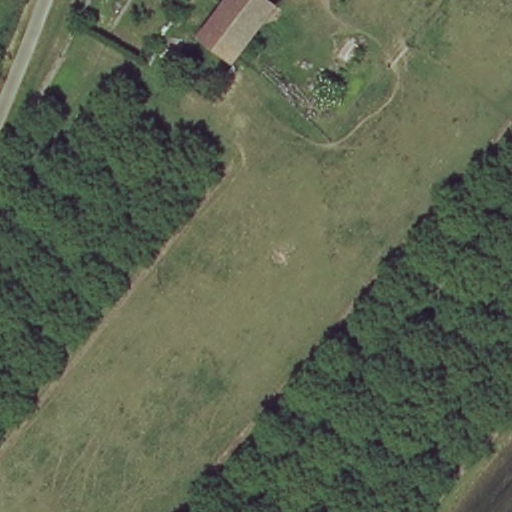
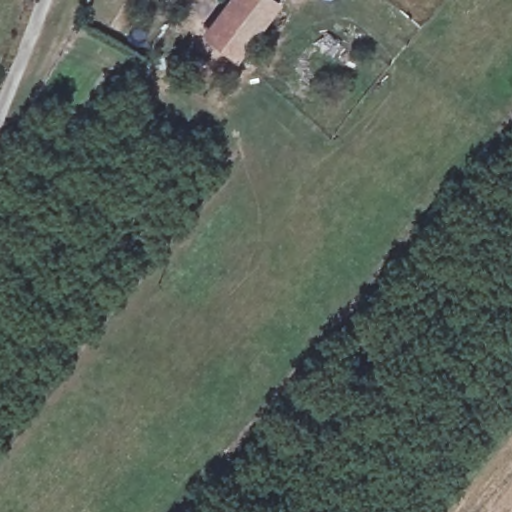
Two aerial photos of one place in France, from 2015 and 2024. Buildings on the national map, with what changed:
unchanged [(234,52),(209,34),(234,0),(261,0),(270,7),(234,52)]

